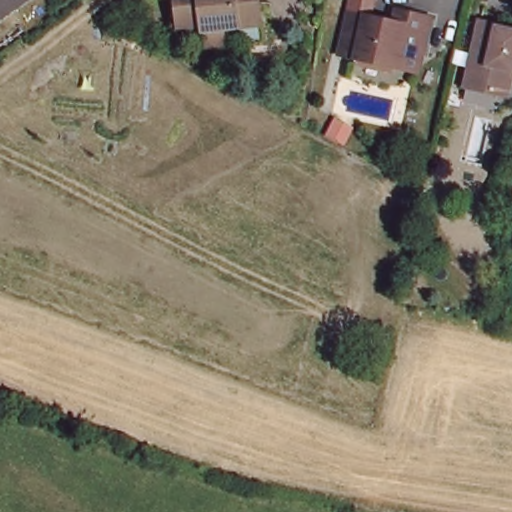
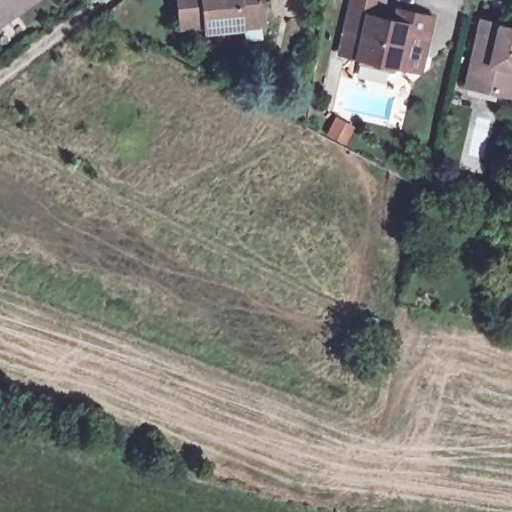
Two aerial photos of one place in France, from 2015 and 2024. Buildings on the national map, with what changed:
unchanged [(0,23),(0,0),(33,0),(0,23)]
unchanged [(206,55),(204,37),(203,29),(179,32),(176,0),(259,0),(262,30),(226,34),(228,52),(206,55)]
unchanged [(404,72),(363,63),(345,59),(354,17),(373,21),(399,27),(402,15),(432,22),(423,60),(419,75),(404,72)]
unchanged [(508,95),(466,86),(480,21),(512,28),(512,76),(508,95)]
unchanged [(356,129),(349,143),(328,133),(336,118),(356,129)]

